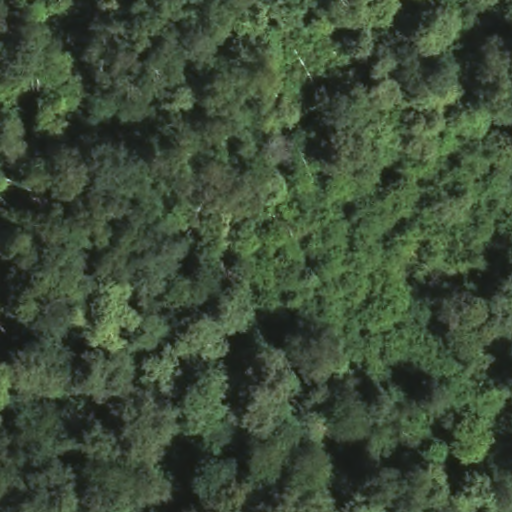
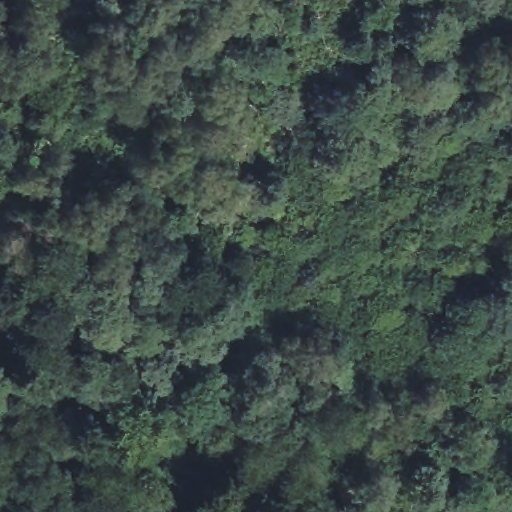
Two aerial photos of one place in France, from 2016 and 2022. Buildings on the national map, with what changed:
[]

